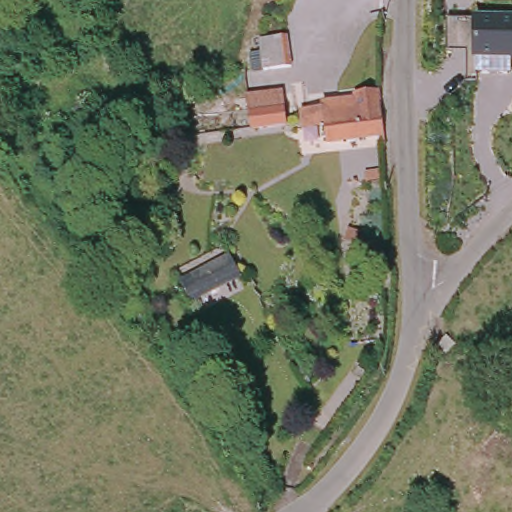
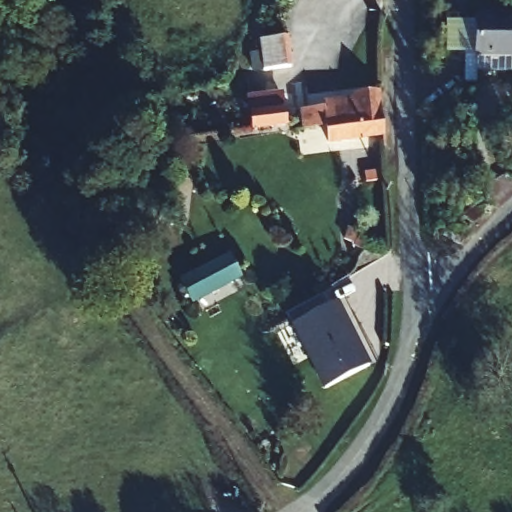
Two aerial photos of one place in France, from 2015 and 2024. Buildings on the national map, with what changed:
unchanged [(474,74),(474,60),(474,17),(512,16),(512,62),(511,62),(511,74),(474,74)]
unchanged [(359,109),(359,105),(383,104),(383,108),(387,142),(387,148),(384,148),(333,149),(327,149),(327,132),(310,132),(310,124),(309,116),(326,116),(326,110),(359,109)]
unchanged [(110,124),(81,135),(75,119),(107,109),(110,124)]
unchanged [(292,136),(248,141),(244,112),(290,111),(292,136)]
unchanged [(244,282),(186,312),(176,284),(232,252),(244,282)]
new [(370,366),(322,390),(288,328),(336,303),(370,366)]

